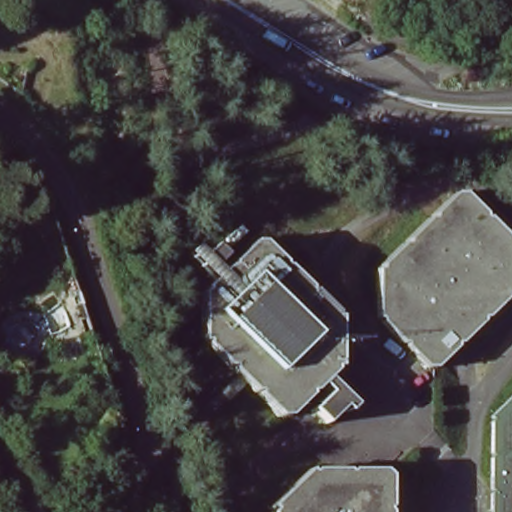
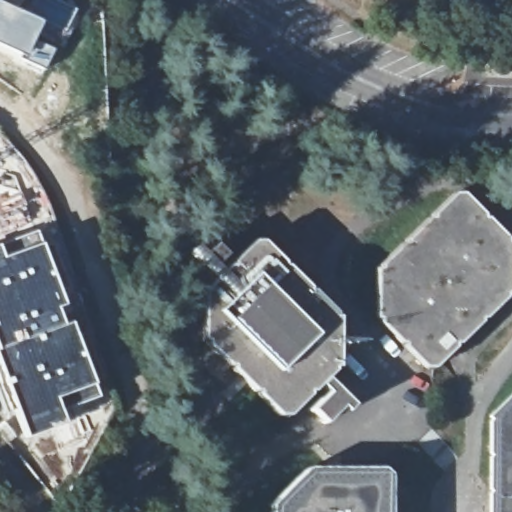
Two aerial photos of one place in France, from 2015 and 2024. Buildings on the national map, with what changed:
new [(16,10),(0,3),(0,0),(21,0),(16,10)]
new [(21,0),(52,0),(75,10),(43,71),(22,60),(41,21),(16,10),(21,0)]
new [(41,21),(22,60),(0,49),(0,3),(16,10),(41,21)]
unchanged [(374,265),(379,264),(379,260),(400,239),(406,239),(405,234),(425,214),(431,214),(430,209),(451,190),(459,190),(480,210),(479,214),(483,215),(507,239),(511,239),(510,290),(506,290),(507,295),(481,319),(476,319),(477,324),(456,344),(451,344),(451,349),(432,368),(422,368),(401,349),(402,343),(396,343),(377,323),(378,318),(374,318),(374,265)]
new [(65,306),(58,309),(63,323),(0,348),(0,242),(36,230),(65,306)]
unchanged [(203,286),(208,286),(207,281),(226,262),(232,262),(231,256),(251,238),(257,237),(280,260),(280,266),(284,265),(305,285),(305,291),(309,290),(331,311),(331,316),(335,316),(334,367),(331,367),(331,371),(310,391),(305,390),(306,396),(285,416),(276,416),(255,395),(256,391),(251,391),(231,372),(232,366),(227,366),(206,345),(206,338),(203,338),(203,286)]
new [(69,321),(97,399),(63,412),(67,423),(24,440),(8,401),(0,377),(0,348),(63,323),(69,321)]
unchanged [(492,492),(489,490),(489,460),(493,456),(489,453),(489,425),(492,423),(489,420),(512,397),(512,512),(489,512),(489,498),(489,496),(492,492)]
unchanged [(310,469),(312,466),(344,467),(346,470),(349,467),(381,467),(386,473),(387,505),(384,507),(387,510),(387,512),(269,512),(269,510),(272,507),(269,504),(308,467),(310,469)]
unchanged [(74,488),(60,481),(73,470),(81,475),(74,488)]

